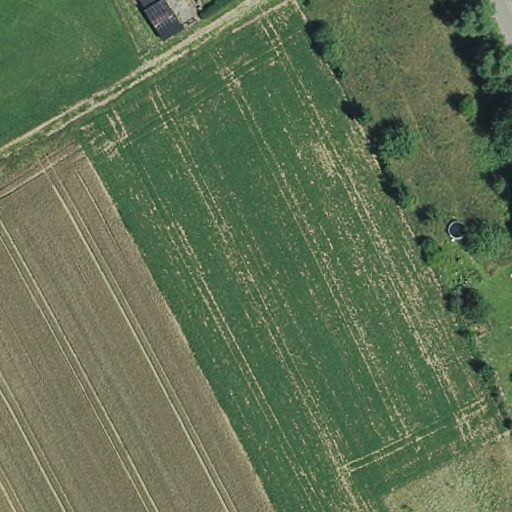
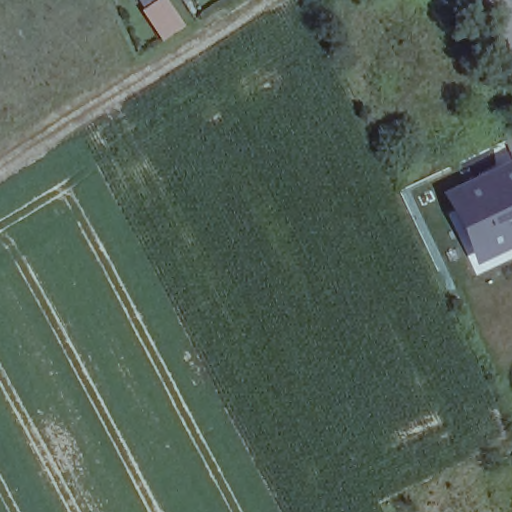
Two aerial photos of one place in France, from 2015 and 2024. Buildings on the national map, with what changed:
new [(187,26),(165,42),(144,10),(161,0),(168,0),(187,26)]
new [(512,156),(512,247),(473,266),(437,192),(512,156)]

